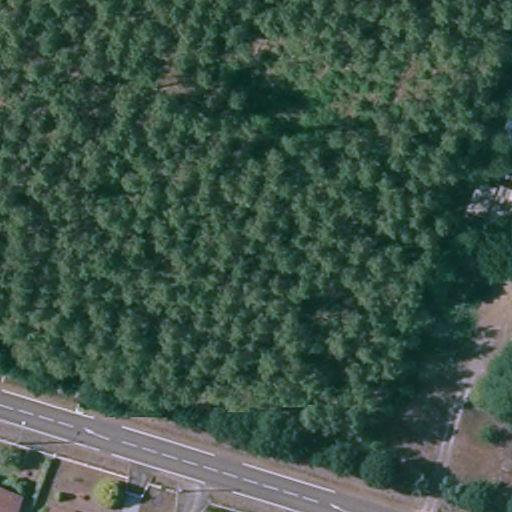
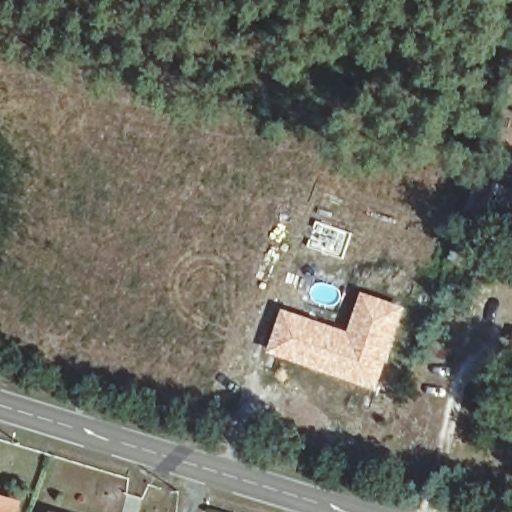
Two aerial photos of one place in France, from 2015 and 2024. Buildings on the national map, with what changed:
unchanged [(512,227),(512,260),(480,247),(491,218),(512,227)]
new [(282,307),(346,329),(360,290),(406,306),(376,391),(266,352),(282,307)]
unchanged [(0,512),(0,499),(19,505),(17,512),(0,512)]

